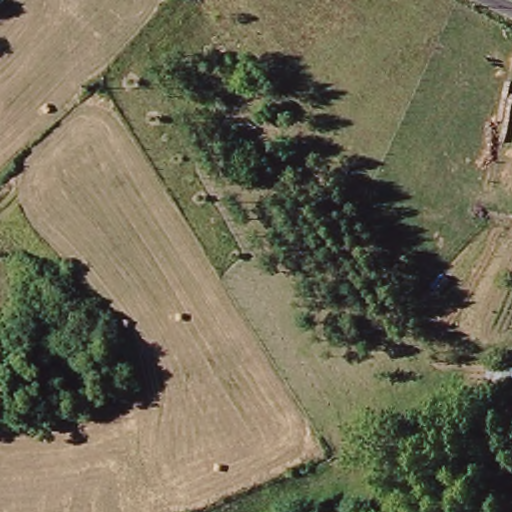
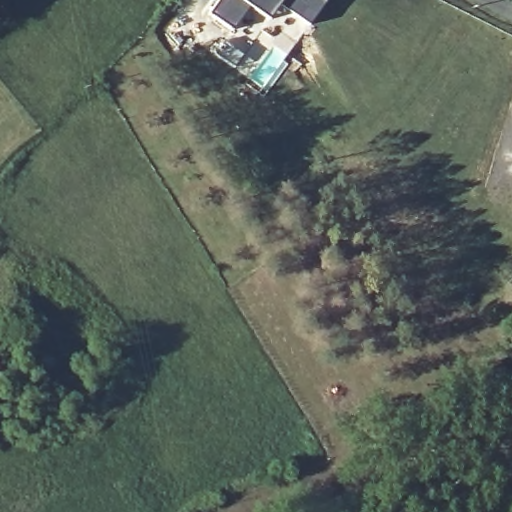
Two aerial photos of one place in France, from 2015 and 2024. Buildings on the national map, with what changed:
new [(209,15),(220,0),(321,0),(322,1),(306,25),(278,4),(267,18),(247,5),(231,29),(209,15)]

